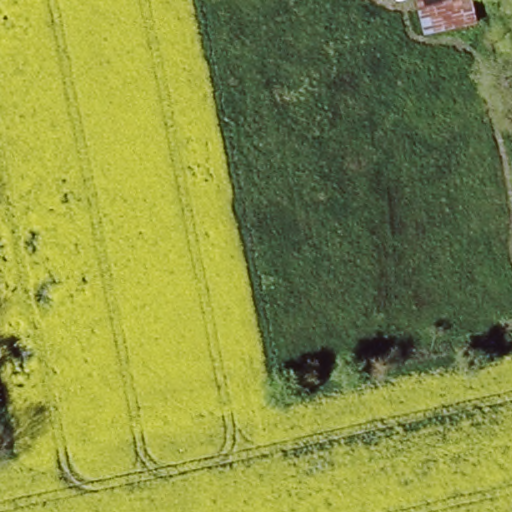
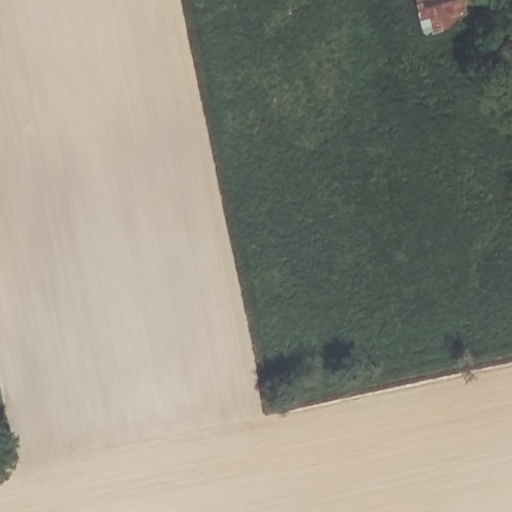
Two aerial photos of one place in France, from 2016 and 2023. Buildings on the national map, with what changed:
unchanged [(425,36),(416,0),(473,0),(478,25),(425,36)]

